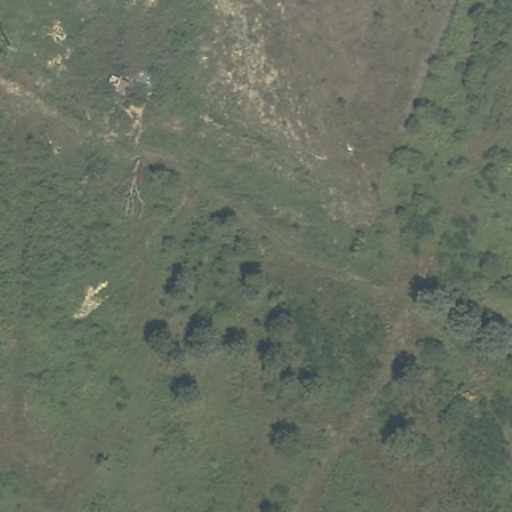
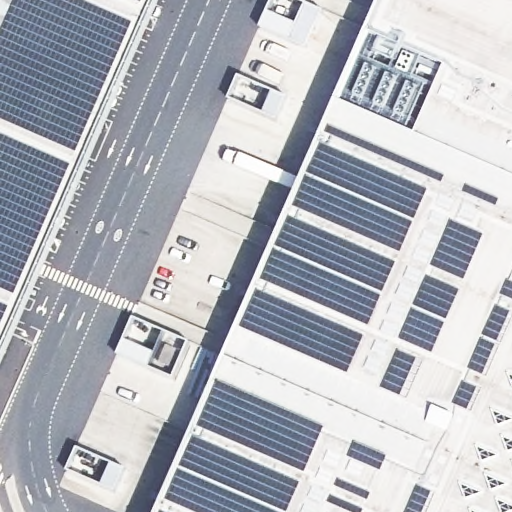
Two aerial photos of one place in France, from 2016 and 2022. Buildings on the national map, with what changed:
new [(162,0),(0,373),(0,0),(162,0)]
new [(381,0),(512,0),(512,512),(159,512),(381,0)]

